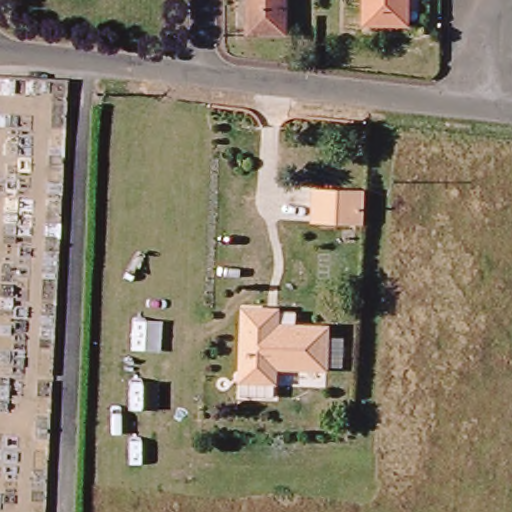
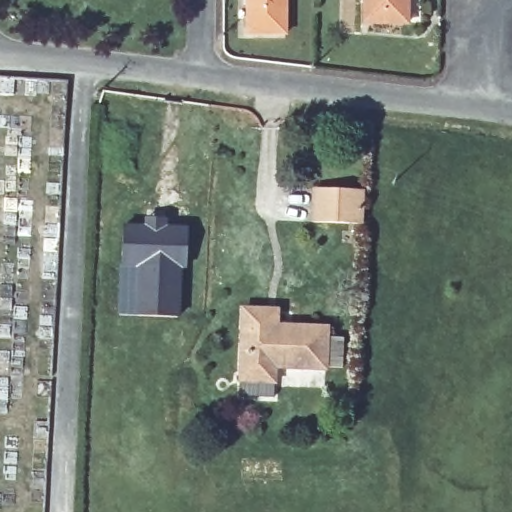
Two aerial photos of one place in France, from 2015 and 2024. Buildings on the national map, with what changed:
unchanged [(253,32),(251,0),(288,0),(289,31),(253,32)]
unchanged [(363,0),(404,0),(404,23),(363,22),(363,0)]
unchanged [(359,185),(358,221),(312,220),(313,187),(359,185)]
new [(144,230),(144,220),(162,220),(162,230),(185,231),(184,268),(177,268),(175,319),(134,317),(136,267),(119,267),(120,229),(144,230)]
unchanged [(322,364),(270,366),(271,394),(243,395),(243,306),(268,305),(279,304),(279,322),(322,322),(322,364)]

